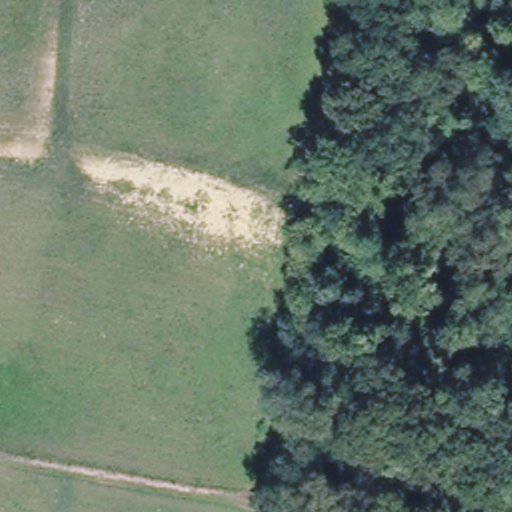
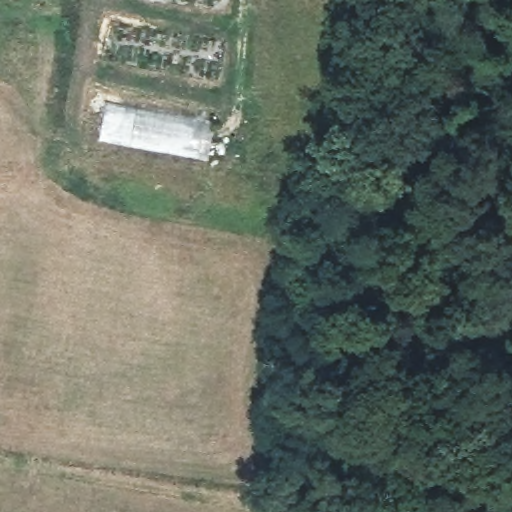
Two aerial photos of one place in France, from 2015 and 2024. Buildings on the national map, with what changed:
new [(214,122),(208,161),(99,140),(108,102),(214,122)]

